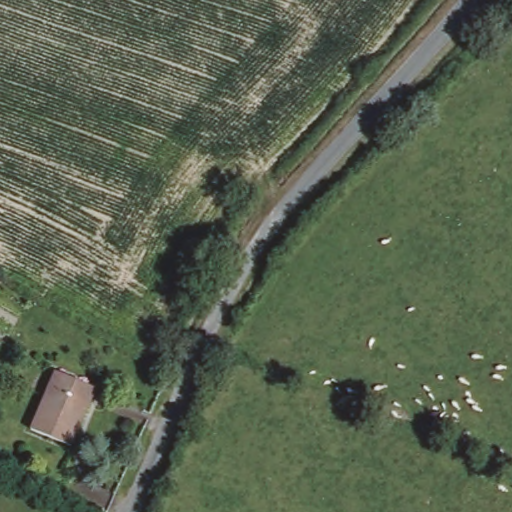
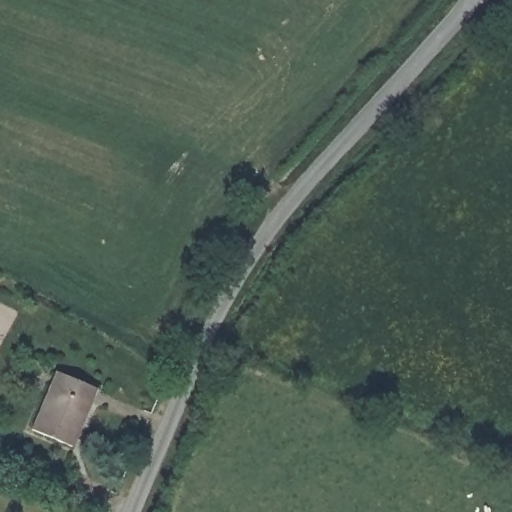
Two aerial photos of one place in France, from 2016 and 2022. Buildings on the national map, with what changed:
unchanged [(71,447),(31,429),(55,371),(95,389),(71,447)]

